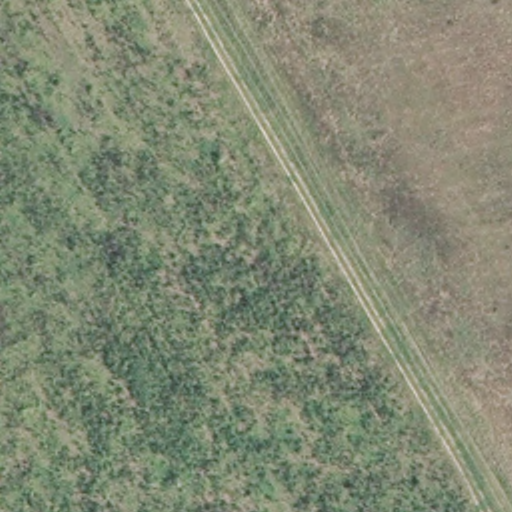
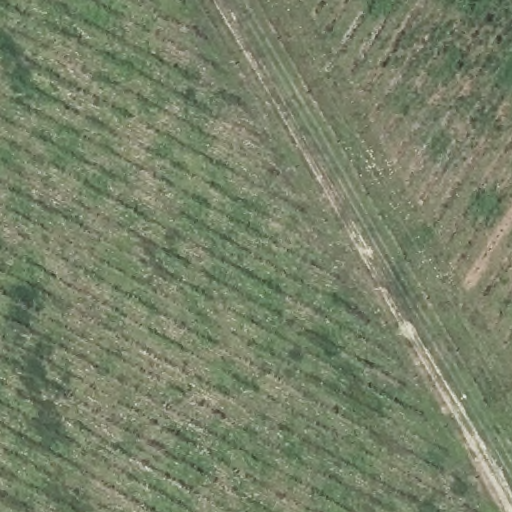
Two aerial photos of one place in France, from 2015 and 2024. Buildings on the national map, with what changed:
[]

